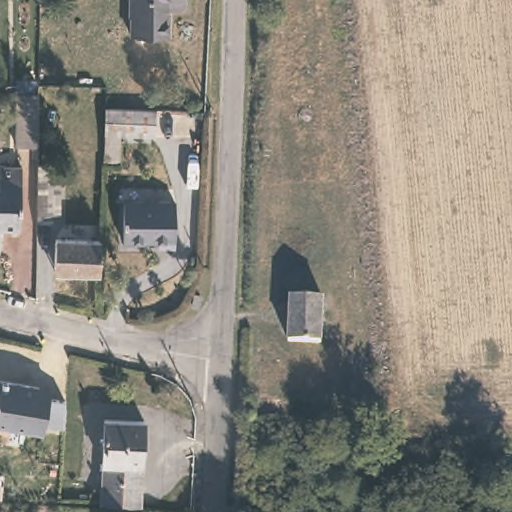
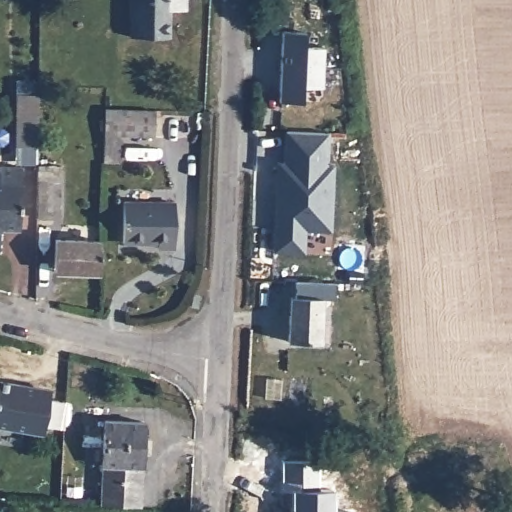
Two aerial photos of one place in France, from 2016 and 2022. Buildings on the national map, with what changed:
unchanged [(185,11),(169,10),(169,37),(131,36),(131,17),(128,17),(128,0),(185,0),(185,11)]
new [(304,86),(304,102),(280,102),(283,32),(306,32),(305,47),(325,48),(323,87),(304,86)]
unchanged [(36,96),(35,148),(15,147),(16,96),(36,96)]
unchanged [(153,112),(153,137),(103,136),(104,110),(153,112)]
new [(332,232),(307,231),(306,254),(271,252),(276,162),(283,162),(284,131),(331,133),(329,164),(335,164),(332,232)]
unchanged [(18,231),(0,230),(0,168),(21,169),(18,231)]
unchanged [(48,184),(49,220),(33,220),(34,182),(48,184)]
unchanged [(175,205),(175,250),(156,249),(156,245),(122,243),(123,205),(175,205)]
unchanged [(95,239),(94,271),(48,268),(50,236),(95,239)]
unchanged [(316,295),(316,338),(282,337),(284,293),(316,295)]
unchanged [(0,429),(0,381),(50,387),(48,400),(66,403),(64,427),(46,425),(43,436),(0,429)]
unchanged [(143,418),(140,503),(98,501),(102,416),(143,418)]

